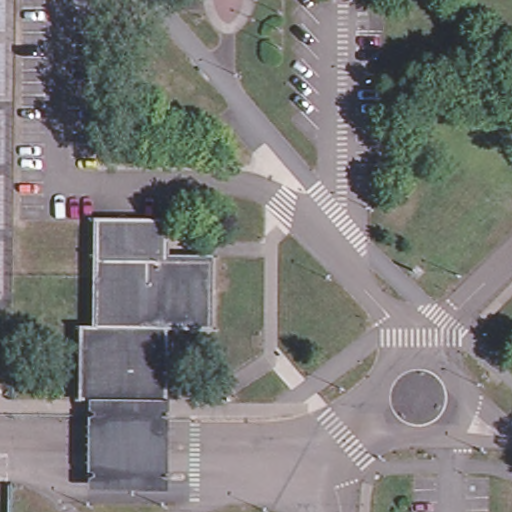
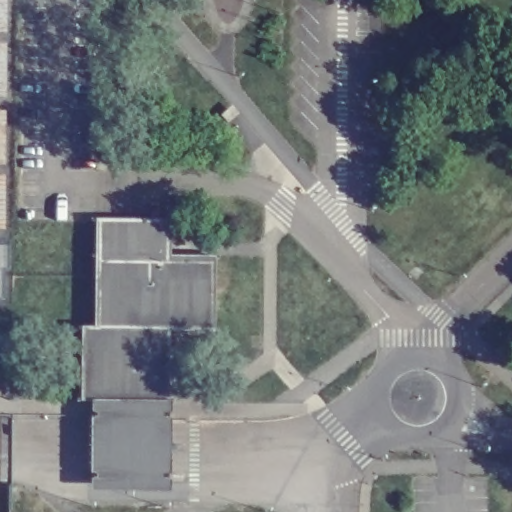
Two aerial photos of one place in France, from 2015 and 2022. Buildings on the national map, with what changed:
unchanged [(0,37),(0,0),(9,0),(9,37),(0,37)]
unchanged [(8,98),(0,98),(0,44),(9,44),(8,98)]
unchanged [(7,164),(0,164),(0,110),(8,110),(7,164)]
unchanged [(7,230),(0,230),(0,176),(7,176),(7,230)]
unchanged [(162,323),(162,359),(144,359),(144,363),(139,363),(139,369),(138,369),(138,381),(130,389),(120,388),(121,381),(94,381),(81,368),(82,357),(94,344),(96,218),(163,219),(163,255),(193,258),(192,255),(208,256),(207,323),(205,323),(162,323)]
unchanged [(6,301),(0,301),(0,247),(7,247),(6,301)]
unchanged [(169,397),(167,488),(87,487),(89,396),(169,397)]

